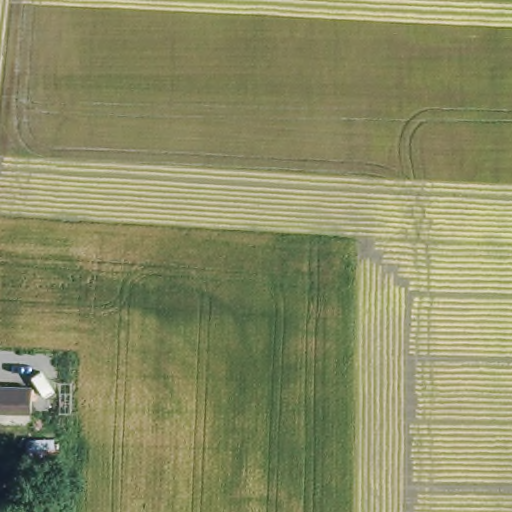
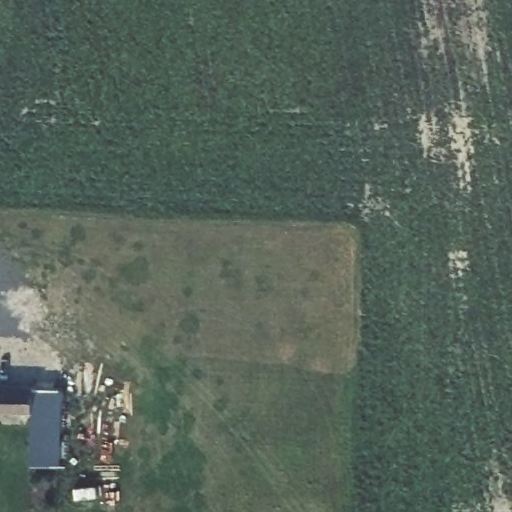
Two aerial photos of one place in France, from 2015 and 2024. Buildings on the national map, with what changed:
new [(31,392),(34,392),(34,387),(65,386),(61,463),(30,464),(31,413),(30,413),(31,392)]
unchanged [(31,392),(30,413),(0,411),(0,390),(31,392)]

